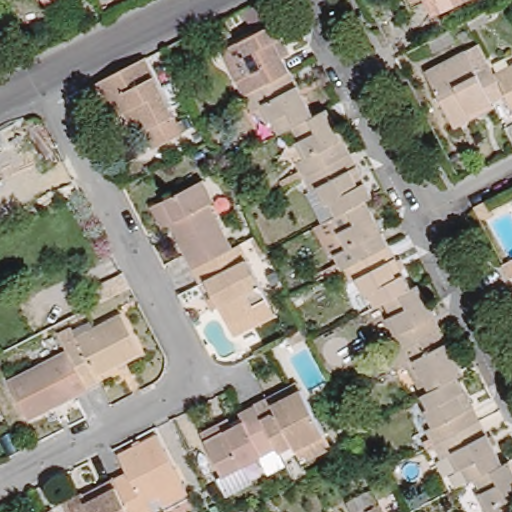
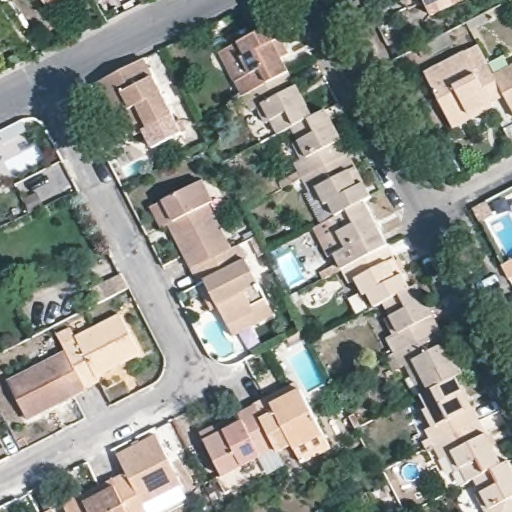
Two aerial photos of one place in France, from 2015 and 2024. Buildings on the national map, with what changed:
unchanged [(47,4),(44,0),(53,0),(47,4)]
unchanged [(433,15),(426,0),(465,0),(433,15)]
unchanged [(215,50),(268,22),(285,54),(278,58),(285,72),(239,95),(215,50)]
unchanged [(473,119),(455,129),(425,72),(465,52),(475,71),(489,65),(494,75),(505,96),(491,103),(494,108),(473,119)]
unchanged [(123,116),(114,121),(97,87),(145,62),(183,137),(153,153),(143,135),(136,139),(123,116)]
unchanged [(494,75),(512,66),(512,108),(505,96),(494,75)]
unchanged [(285,72),(308,115),(286,127),(274,133),(267,119),(262,122),(254,107),(247,110),(239,95),(285,72)]
unchanged [(345,153),(298,177),(290,162),(297,158),(289,142),(293,141),(286,127),(308,115),(322,108),(345,153)]
unchanged [(368,197),(361,200),(332,215),(324,202),(321,204),(313,187),(306,191),(298,177),(345,153),(368,197)]
unchanged [(157,233),(145,212),(159,204),(198,185),(208,206),(204,209),(225,253),(187,274),(164,229),(157,233)]
unchanged [(307,227),(325,218),(332,215),(361,200),(384,245),(337,268),(329,253),(322,256),(307,227)]
unchanged [(487,200),(495,215),(481,222),(473,207),(487,200)]
unchanged [(384,245),(406,287),(377,302),(370,306),(364,294),(360,296),(351,279),(344,283),(337,268),(384,245)]
unchanged [(230,343),(223,331),(199,285),(194,287),(187,274),(225,253),(233,249),(265,310),(271,322),(230,343)]
unchanged [(503,269),(512,265),(512,282),(511,283),(503,269)]
unchanged [(406,287),(413,284),(436,329),(390,353),(382,337),(389,334),(381,319),(384,316),(377,302),(406,287)]
unchanged [(142,354),(98,376),(99,380),(85,387),(67,351),(63,346),(57,333),(71,326),(70,322),(88,313),(95,327),(122,313),(142,354)]
unchanged [(390,353),(436,329),(458,373),(452,377),(416,395),(400,365),(390,370),(383,357),(390,353)]
unchanged [(28,419),(9,381),(67,351),(85,387),(28,419)]
unchanged [(452,377),(475,421),(429,444),(421,429),(427,427),(418,410),(423,408),(416,395),(452,377)]
unchanged [(302,464),(295,449),(283,428),(269,434),(255,407),(254,404),(268,397),(297,382),(301,390),(324,434),(331,449),(302,464)]
unchanged [(217,479),(223,476),(205,442),(201,434),(229,420),(233,427),(243,422),(239,415),(255,407),(269,434),(277,449),(285,465),(268,473),(260,457),(243,466),(251,482),(225,495),(217,479)]
unchanged [(475,421),(497,464),(468,479),(462,482),(455,469),(451,471),(442,455),(436,458),(429,444),(475,421)]
unchanged [(124,512),(108,480),(122,473),(112,455),(153,435),(178,485),(182,494),(149,512),(124,512)]
unchanged [(476,493),(468,479),(497,464),(503,461),(512,477),(512,497),(508,499),(512,508),(512,512),(480,512),(471,495),(476,493)]
unchanged [(77,494),(78,496),(108,480),(124,512),(64,512),(60,503),(77,494)]
unchanged [(46,512),(52,508),(54,512),(46,512)]

